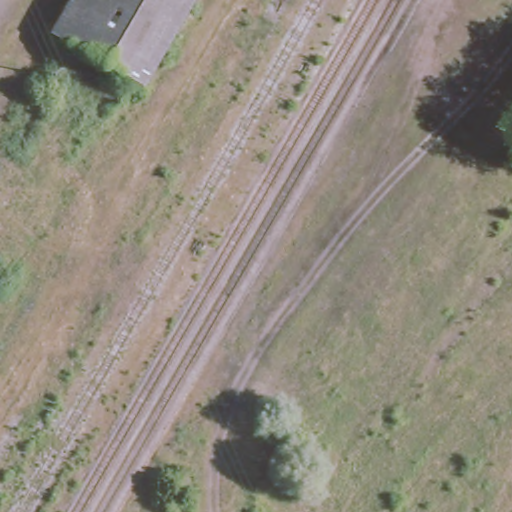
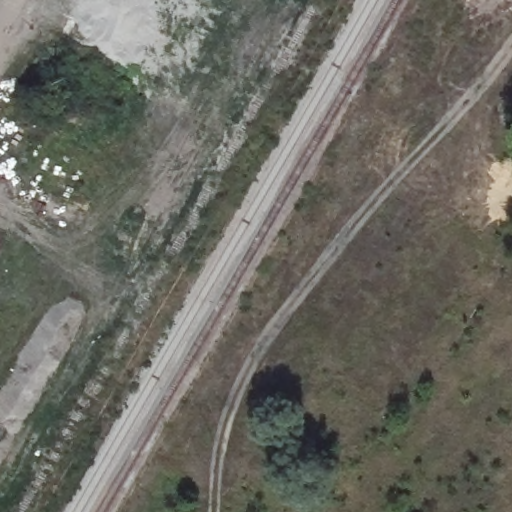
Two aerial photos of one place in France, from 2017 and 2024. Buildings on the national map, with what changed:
demolished [(203,0),(150,96),(50,42),(74,0),(203,0)]

